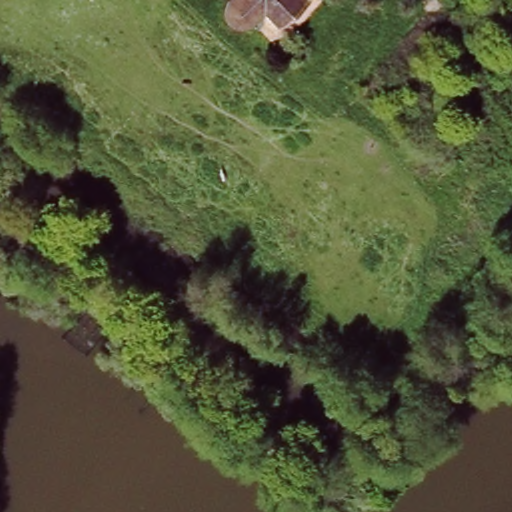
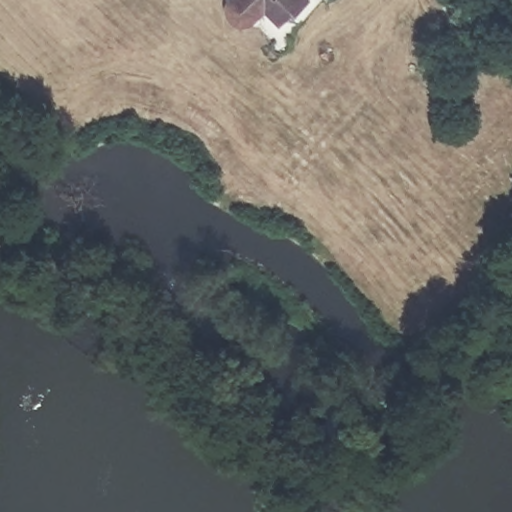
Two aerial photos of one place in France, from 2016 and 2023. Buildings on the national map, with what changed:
unchanged [(229,25),(221,16),(222,2),(223,0),(301,0),(275,25),(259,11),(251,19),(240,24),(229,25)]

